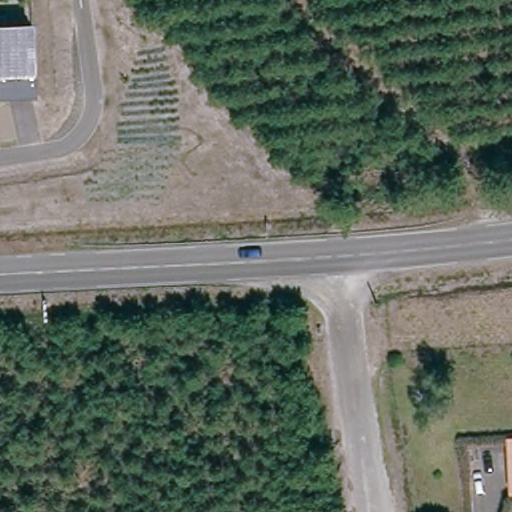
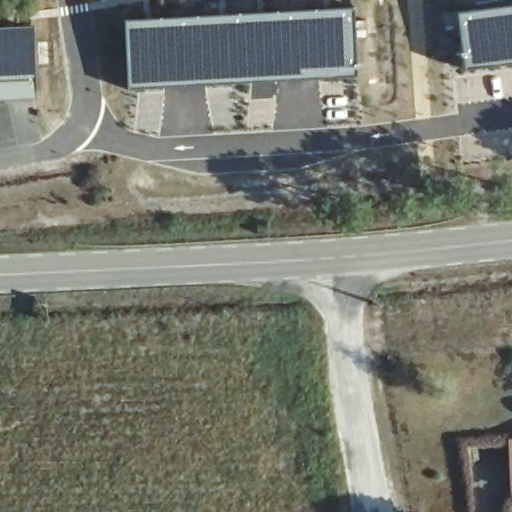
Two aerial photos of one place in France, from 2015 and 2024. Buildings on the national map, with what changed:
new [(475,2),(488,0),(512,0),(512,61),(461,67),(454,8),(475,5),(475,2)]
new [(351,5),(353,74),(233,82),(125,87),(121,17),(351,5)]
unchanged [(36,95),(0,97),(0,12),(5,12),(6,25),(33,24),(36,95)]
unchanged [(512,453),(511,443),(512,443),(512,453)]

